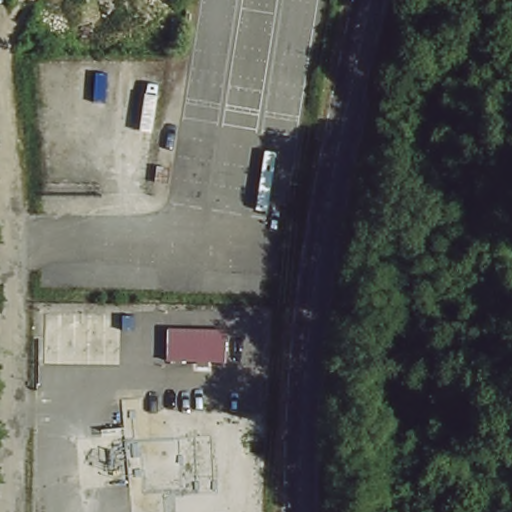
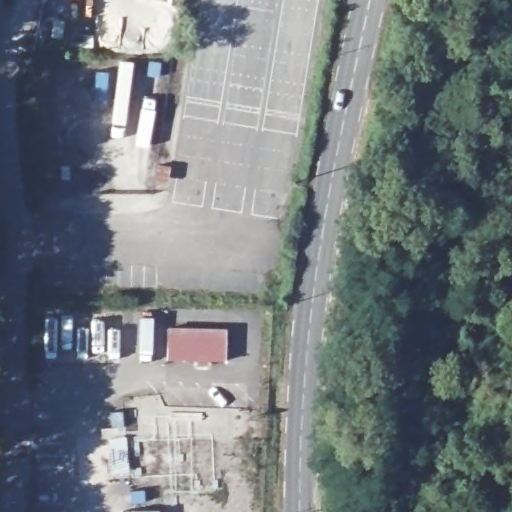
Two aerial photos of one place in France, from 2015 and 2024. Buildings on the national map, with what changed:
unchanged [(225,334),(225,366),(165,365),(166,332),(225,334)]

